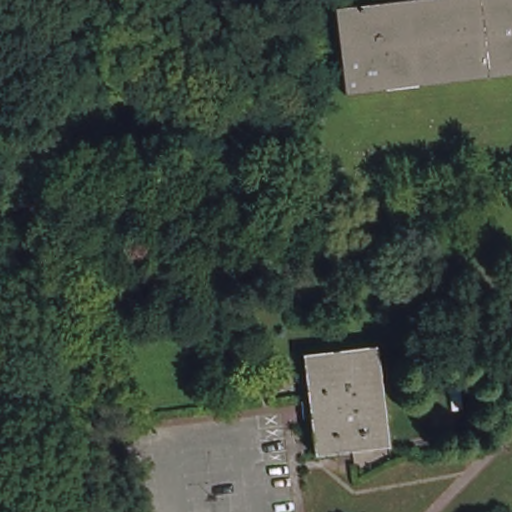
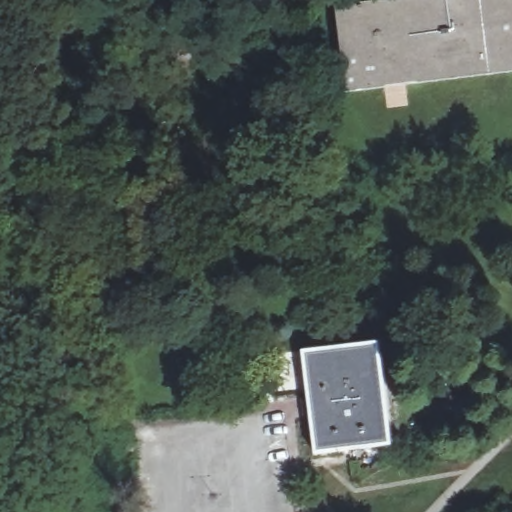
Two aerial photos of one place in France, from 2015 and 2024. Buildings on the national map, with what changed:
unchanged [(393,0),(512,0),(512,72),(350,92),(339,6),(393,0)]
unchanged [(181,124),(181,109),(190,109),(191,124),(181,124)]
unchanged [(310,356),(382,348),(394,450),(321,457),(310,356)]

